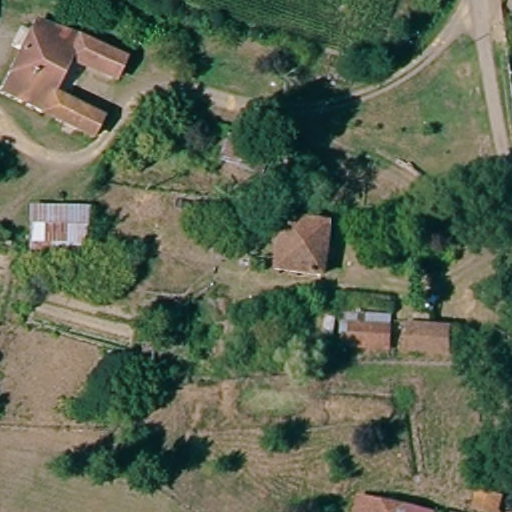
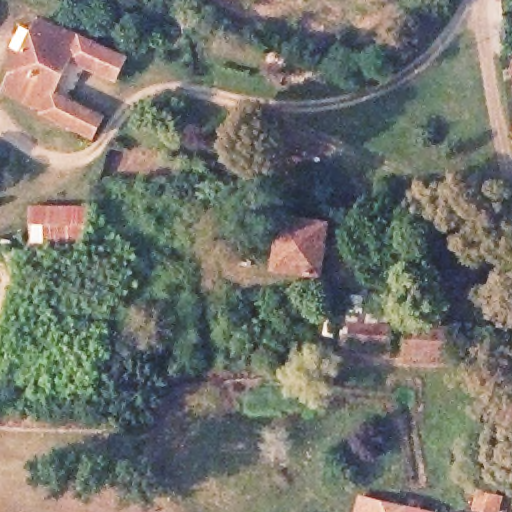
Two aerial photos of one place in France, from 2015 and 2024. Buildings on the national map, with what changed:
unchanged [(120,83),(67,59),(55,88),(101,107),(92,131),(8,95),(36,21),(132,60),(120,83)]
unchanged [(94,254),(29,257),(31,205),(94,206),(94,254)]
unchanged [(281,222),(309,223),(331,226),(324,272),(273,267),(281,222)]
unchanged [(343,312),(394,315),(392,352),(341,351),(343,312)]
unchanged [(452,333),(451,356),(411,353),(412,329),(452,333)]
unchanged [(499,512),(473,512),(478,496),(502,502),(499,512)]
unchanged [(394,512),(359,512),(362,502),(394,512)]

